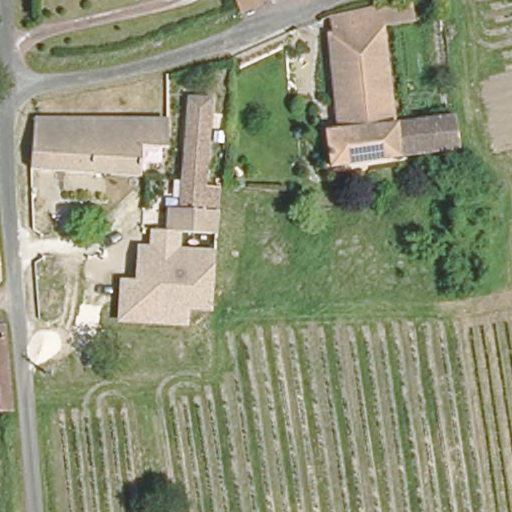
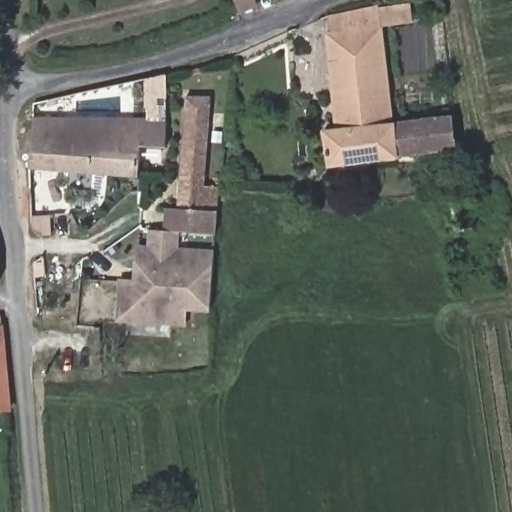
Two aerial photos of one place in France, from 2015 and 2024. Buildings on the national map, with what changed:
unchanged [(236,12),(232,0),(254,0),(256,6),(236,12)]
unchanged [(334,162),(329,131),(339,129),(330,32),(342,31),(342,15),(378,9),(413,3),(417,24),(380,30),(392,123),(436,119),(454,117),(457,144),(438,147),(334,162)]
unchanged [(181,231),(163,230),(164,204),(178,207),(187,95),(213,97),(204,186),(220,187),(218,232),(181,231)]
unchanged [(166,121),(165,145),(139,145),(137,174),(29,167),(29,166),(32,116),(166,121)]
unchanged [(487,194),(489,227),(458,229),(454,196),(487,194)]
unchanged [(182,249),(216,251),(213,313),(191,313),(189,328),(119,325),(120,279),(135,280),(138,245),(149,246),(150,230),(163,230),(181,231),(182,249)]
unchanged [(0,353),(5,402),(5,414),(0,414),(0,353)]

